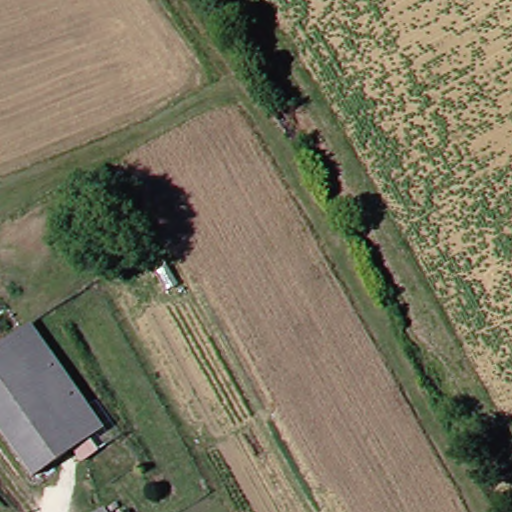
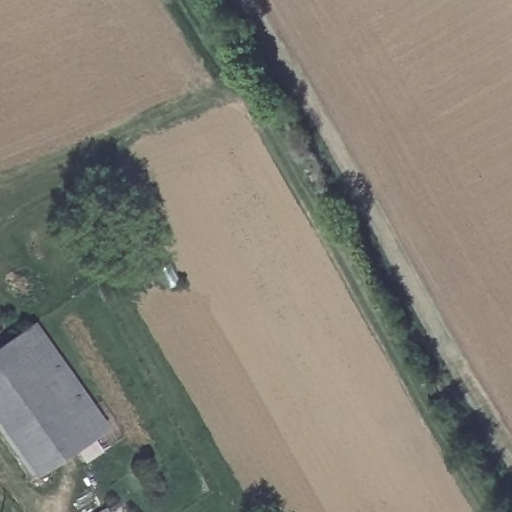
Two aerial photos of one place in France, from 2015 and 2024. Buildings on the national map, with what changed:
unchanged [(102,432),(31,478),(0,433),(0,346),(31,326),(102,432)]
unchanged [(122,500),(131,512),(106,512),(122,500)]

